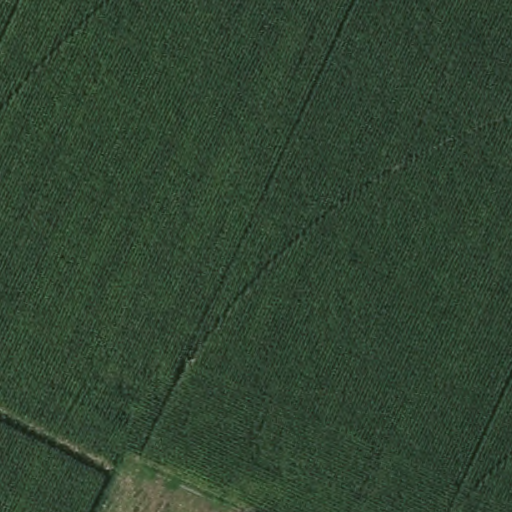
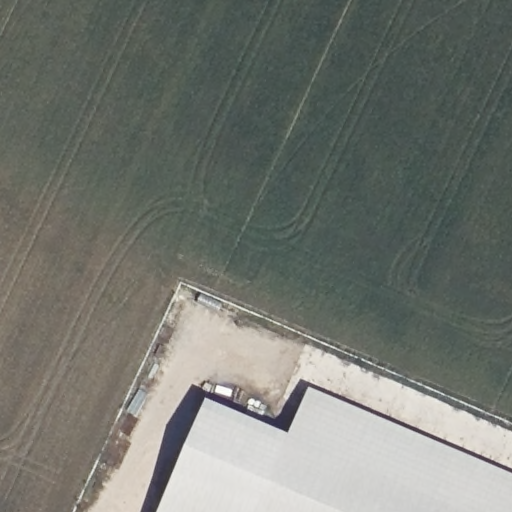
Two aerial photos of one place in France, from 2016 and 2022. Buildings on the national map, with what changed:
new [(207,400),(289,435),(308,388),(512,474),(512,512),(159,512),(207,400)]

